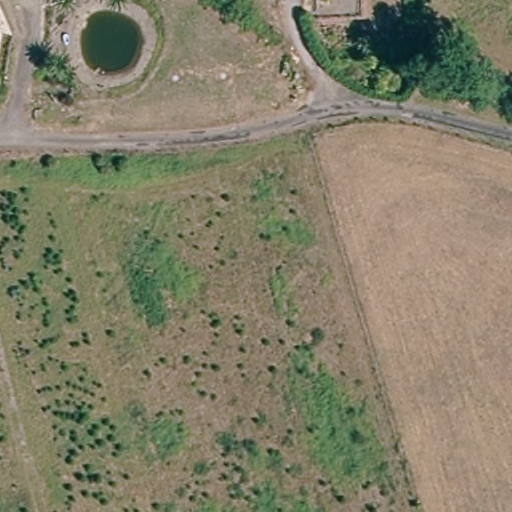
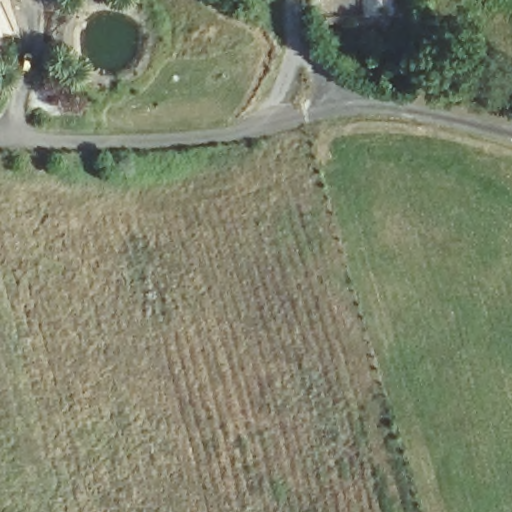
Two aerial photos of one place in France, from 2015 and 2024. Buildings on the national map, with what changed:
unchanged [(318,20),(316,0),(368,0),(369,17),(318,20)]

